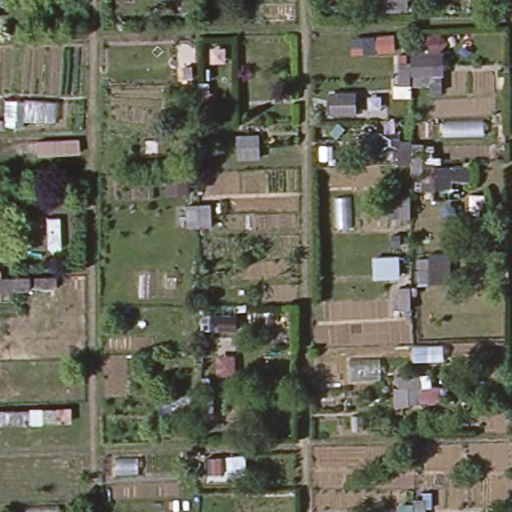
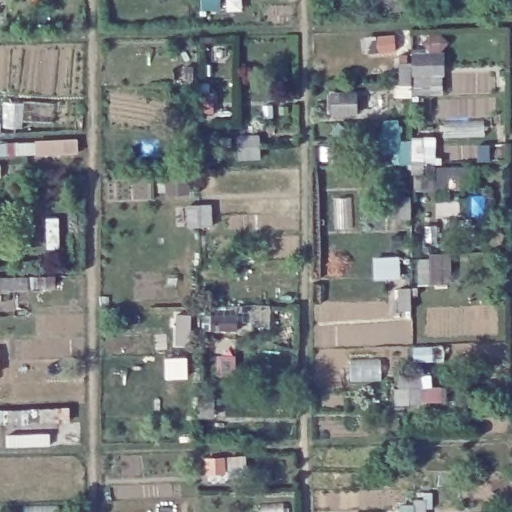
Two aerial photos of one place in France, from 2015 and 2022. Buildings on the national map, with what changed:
unchanged [(428,92),(427,85),(412,87),(412,98),(390,97),(390,84),(395,82),(396,61),(410,61),(410,50),(421,47),(435,31),(449,44),(442,51),(444,92),(428,92)]
unchanged [(472,184),(450,185),(450,192),(420,192),(419,177),(408,173),(408,164),(392,165),(391,151),(381,151),(381,133),(397,132),(398,140),(410,141),(412,149),(420,151),(417,120),(433,118),(436,157),(440,157),(441,166),(471,166),(472,184)]
unchanged [(420,290),(415,257),(450,255),(454,288),(420,290)]
unchanged [(57,272),(57,285),(35,286),(35,273),(57,272)]
unchanged [(30,286),(0,287),(0,275),(30,273),(30,286)]
unchanged [(392,389),(397,387),(396,377),(429,375),(431,388),(445,387),(445,402),(393,405),(392,389)]
unchanged [(215,395),(215,417),(160,417),(160,397),(215,395)]
unchanged [(70,424),(0,428),(0,411),(68,408),(70,424)]

